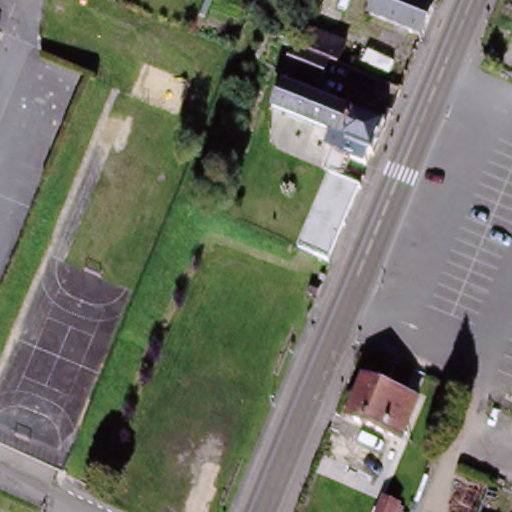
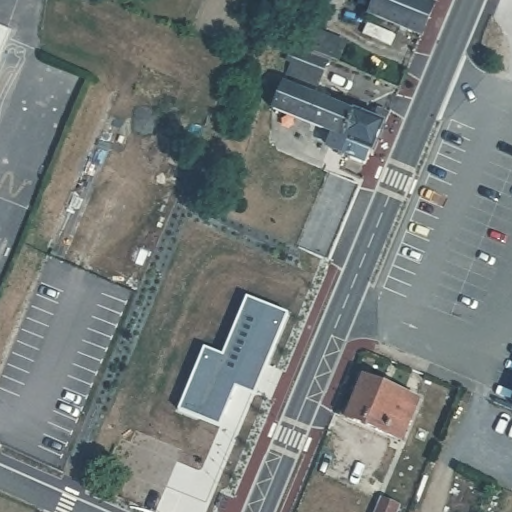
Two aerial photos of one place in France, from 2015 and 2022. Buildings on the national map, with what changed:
unchanged [(366,16),(373,0),(433,0),(425,22),(419,37),(366,16)]
unchanged [(284,73),(295,47),(304,51),(305,52),(314,32),(341,42),(332,62),(327,61),(316,86),(284,73)]
unchanged [(324,142),(329,136),(288,117),(269,110),(280,85),(348,114),(349,111),(371,120),(376,109),(387,115),(383,125),(371,153),(364,168),(329,155),(324,149),(324,142)]
unchanged [(339,179),(343,169),(361,176),(357,187),(326,262),(295,249),(326,174),(339,179)]
new [(208,348),(226,355),(246,300),(285,316),(259,391),(238,385),(223,420),(186,407),(208,348)]
unchanged [(356,377),(413,399),(397,440),(341,418),(356,377)]
unchanged [(396,512),(375,512),(379,499),(398,506),(396,512)]

